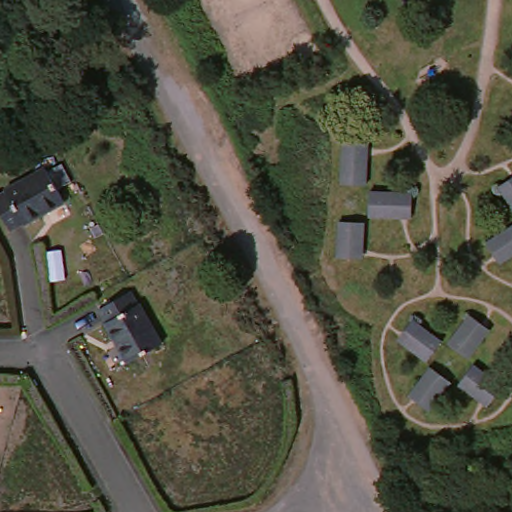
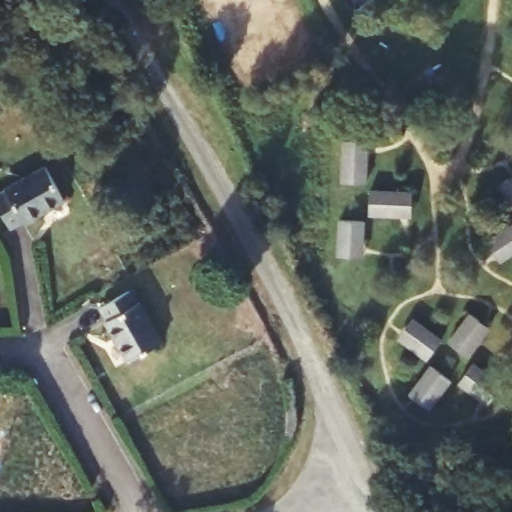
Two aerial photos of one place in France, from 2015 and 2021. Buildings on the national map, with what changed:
unchanged [(369,149),(366,189),(341,187),(344,147),(369,149)]
unchanged [(0,226),(0,198),(1,197),(0,195),(38,175),(56,210),(21,229),(20,227),(4,235),(0,226)]
unchanged [(512,186),(512,218),(498,194),(512,186)]
unchanged [(413,200),(411,222),(369,220),(371,197),(413,200)]
unchanged [(358,229),(355,263),(332,261),(335,226),(358,229)]
unchanged [(486,250),(512,235),(512,263),(498,271),(486,250)]
unchanged [(131,296),(139,306),(161,345),(124,365),(104,326),(105,325),(99,312),(131,296)]
unchanged [(470,326),(488,339),(467,367),(449,355),(470,326)]
unchanged [(399,350),(414,330),(443,351),(428,371),(399,350)]
unchanged [(473,375),(500,397),(484,415),(458,393),(473,375)]
unchanged [(450,390),(428,419),(411,405),(433,377),(450,390)]

